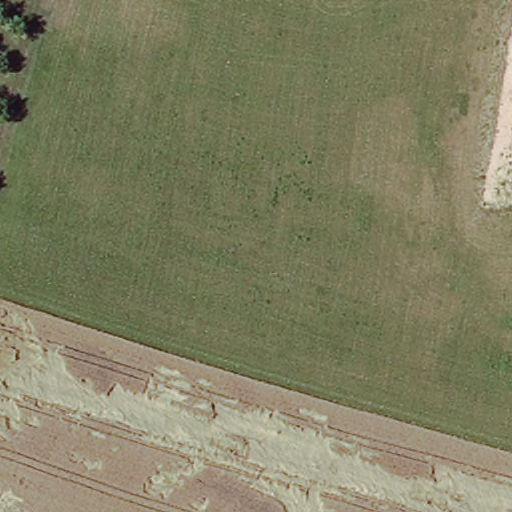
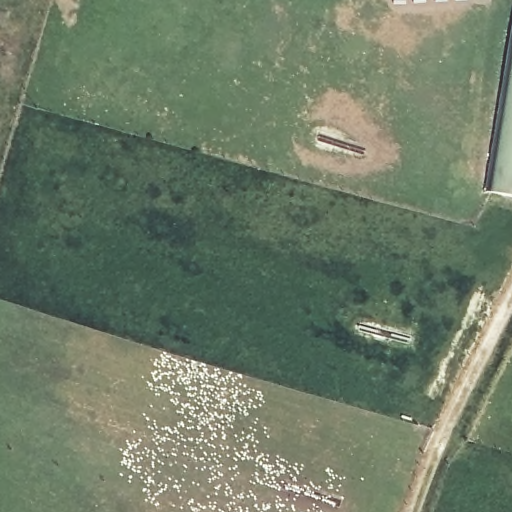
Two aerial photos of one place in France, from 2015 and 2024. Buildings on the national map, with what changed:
new [(512,75),(512,196),(493,193),(512,75)]

